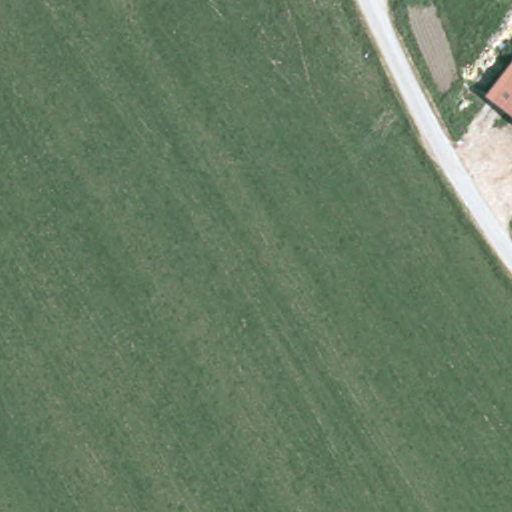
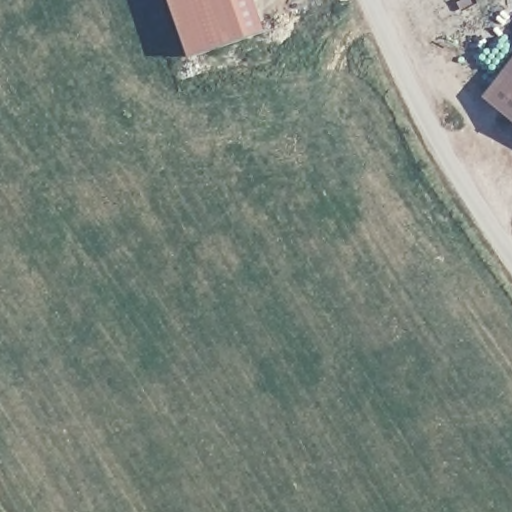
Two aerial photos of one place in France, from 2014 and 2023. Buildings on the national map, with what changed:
new [(268,30),(191,58),(171,0),(258,0),(268,30)]
unchanged [(485,99),(512,61),(512,120),(485,99)]

